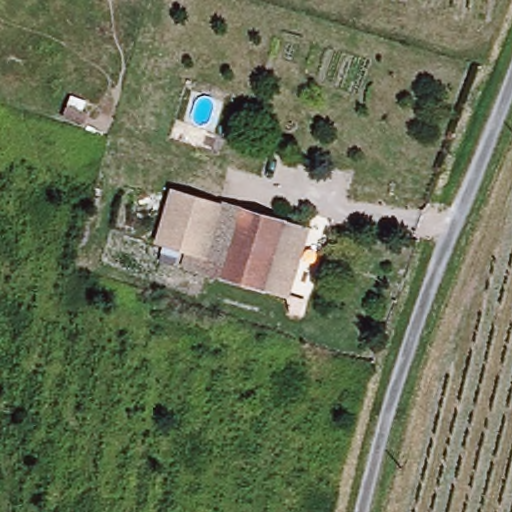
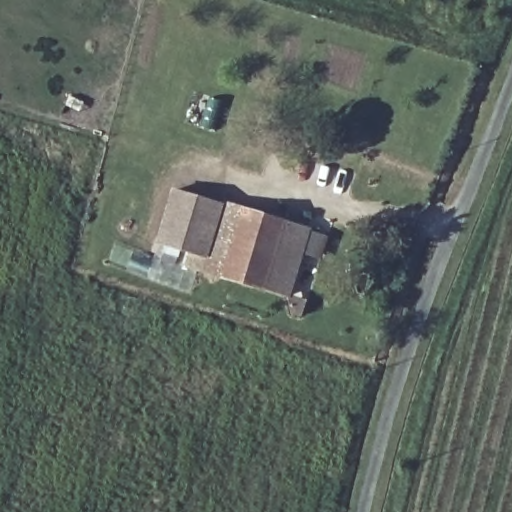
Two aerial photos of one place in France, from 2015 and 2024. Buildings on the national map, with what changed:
unchanged [(303,224),(284,287),(182,257),(186,245),(157,237),(172,185),(303,224)]

